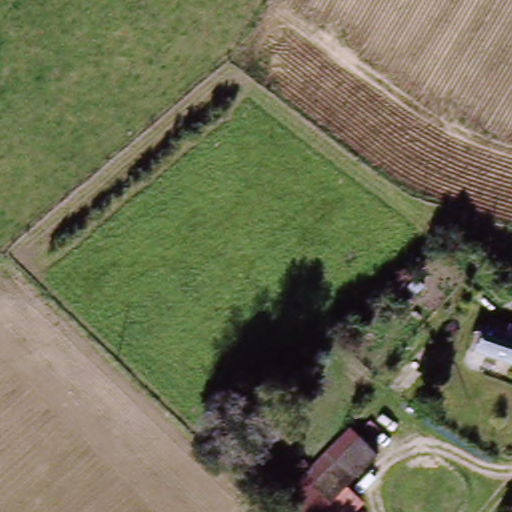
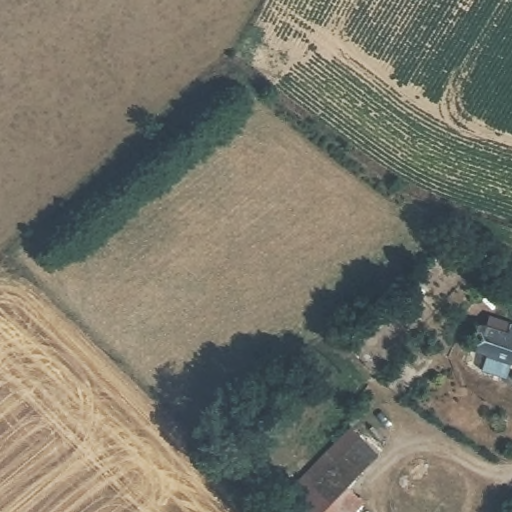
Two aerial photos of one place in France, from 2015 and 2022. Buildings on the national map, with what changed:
unchanged [(490,313),(512,324),(512,365),(472,345),(490,313)]
unchanged [(299,486),(354,430),(374,450),(319,504),(311,512),(289,512),(281,505),(299,486)]

